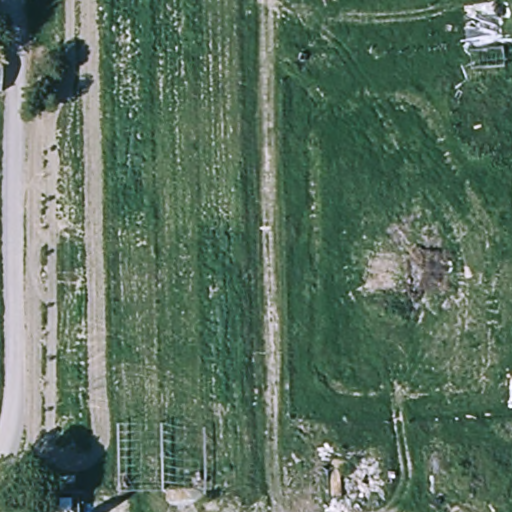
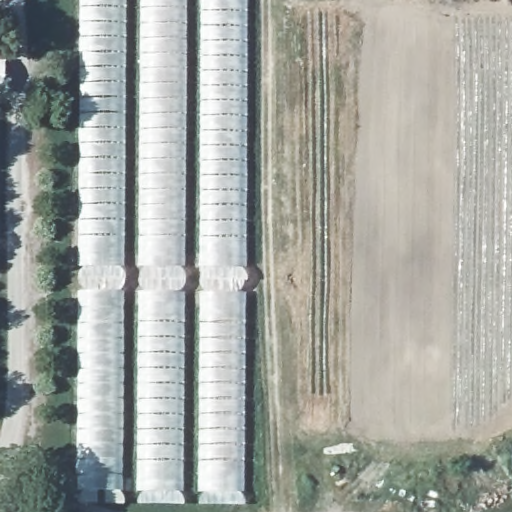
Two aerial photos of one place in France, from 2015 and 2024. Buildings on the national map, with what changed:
demolished [(34,498),(24,95),(65,94),(66,0),(237,0),(247,490),(83,496),(81,512),(23,512),(21,501),(34,498)]
new [(246,0),(245,269),(79,267),(81,0),(246,0)]
new [(2,92),(0,91),(0,61),(3,62),(2,92)]
new [(79,292),(245,292),(242,492),(78,491),(79,292)]

